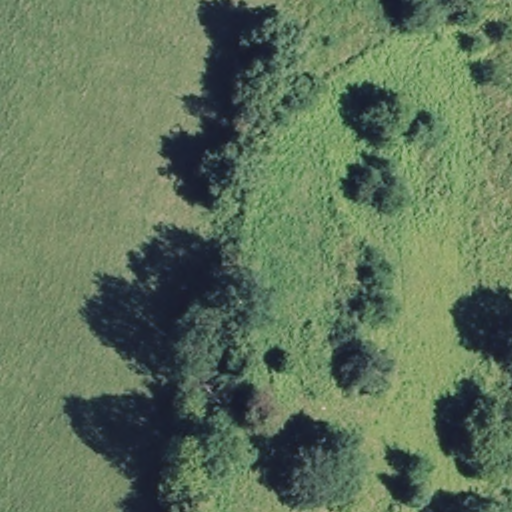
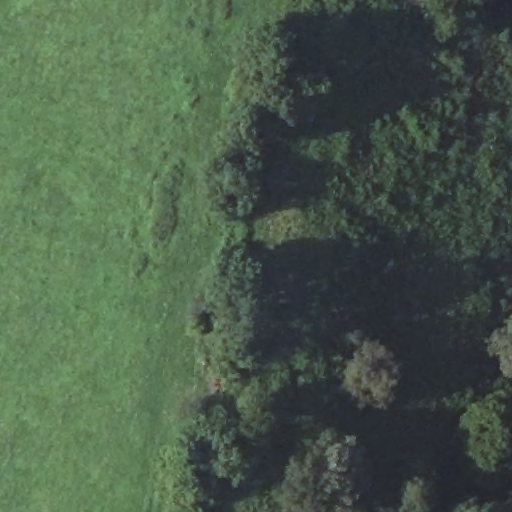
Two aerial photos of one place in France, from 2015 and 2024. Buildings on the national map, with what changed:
[]

